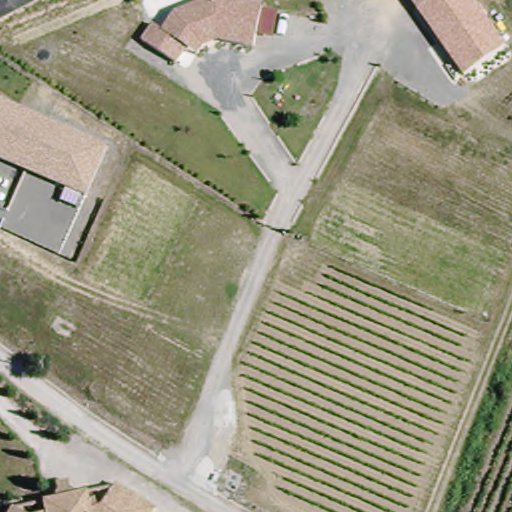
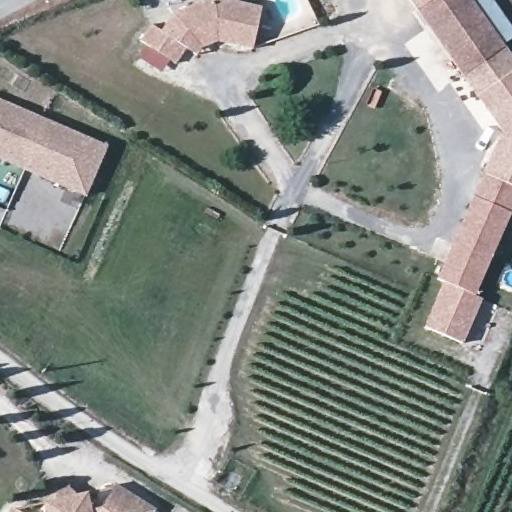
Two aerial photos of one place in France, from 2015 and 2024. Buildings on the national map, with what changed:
unchanged [(197,52),(186,45),(175,62),(141,41),(152,24),(162,30),(173,12),(201,0),(249,0),(262,2),(253,44),(220,38),(218,38),(202,44),(197,52)]
unchanged [(414,0),(431,0),(420,8),(414,0)]
unchanged [(474,0),(505,45),(465,74),(420,8),(431,0),(474,0)]
new [(483,177),(501,131),(477,97),(465,74),(505,45),(512,55),(512,211),(510,215),(475,295),(439,280),(473,199),(483,177)]
unchanged [(0,95),(110,143),(87,195),(0,157),(0,95)]
new [(475,295),(482,298),(462,343),(424,325),(443,281),(475,295)]
unchanged [(115,488),(154,510),(153,512),(98,512),(115,488)]
unchanged [(42,511),(61,495),(93,505),(90,510),(96,512),(42,512),(42,511)]

